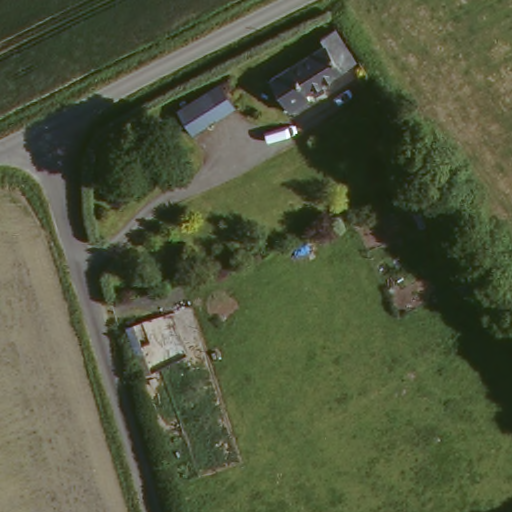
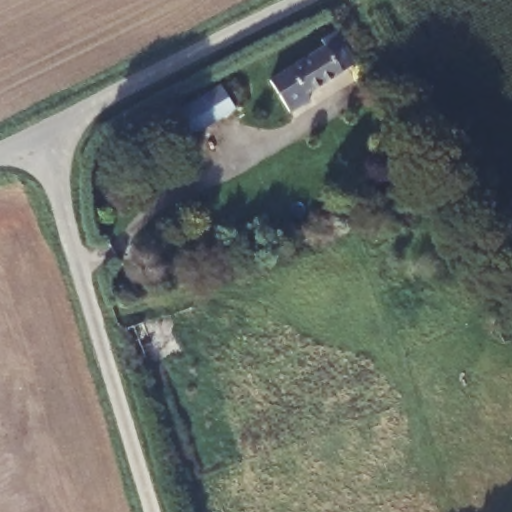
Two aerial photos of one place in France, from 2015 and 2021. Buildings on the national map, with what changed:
unchanged [(320,47),(316,39),(335,27),(353,62),(306,88),(311,97),(286,110),(266,76),(320,47)]
unchanged [(219,83),(236,107),(198,133),(180,111),(219,83)]

